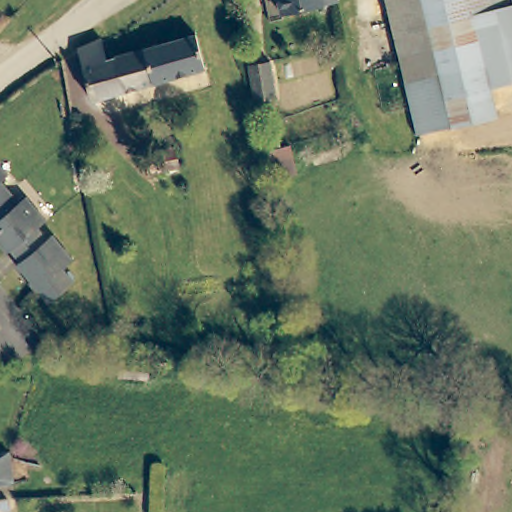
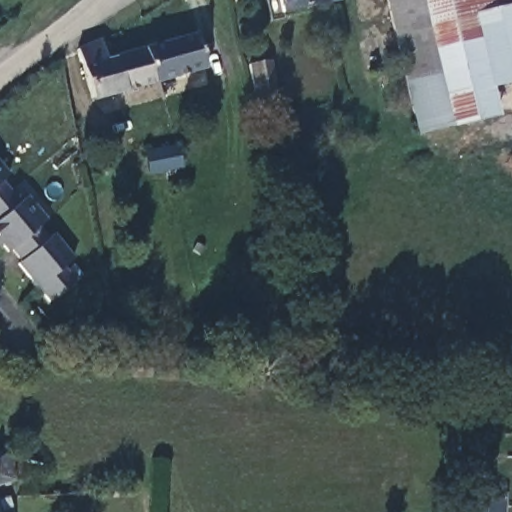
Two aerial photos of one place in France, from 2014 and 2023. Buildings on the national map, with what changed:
unchanged [(282,12),(279,0),(335,0),(336,2),(282,12)]
unchanged [(411,104),(399,55),(386,0),(512,0),(512,80),(503,82),(411,104)]
unchanged [(196,34),(206,67),(125,90),(116,57),(196,34)]
unchanged [(93,99),(78,51),(103,39),(107,59),(116,57),(125,90),(93,99)]
unchanged [(249,60),(273,57),(276,81),(277,92),(254,95),(253,86),(249,60)]
unchanged [(510,111),(418,133),(411,104),(503,82),(510,111)]
unchanged [(182,168),(170,170),(169,164),(148,168),(144,148),(177,142),(182,168)]
unchanged [(2,182),(21,204),(28,198),(48,221),(39,228),(49,240),(54,236),(74,260),(65,267),(77,282),(51,303),(20,266),(23,263),(13,251),(9,254),(0,243),(0,165),(9,175),(2,182)]
unchanged [(8,451),(13,481),(0,486),(0,452),(8,451)]

